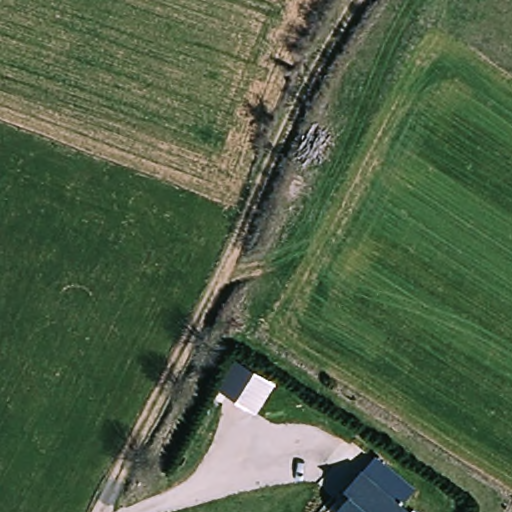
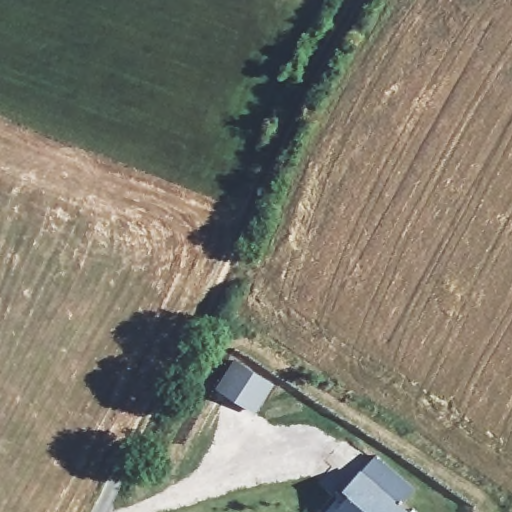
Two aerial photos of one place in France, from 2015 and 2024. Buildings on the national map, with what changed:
unchanged [(258,415),(218,390),(238,361),(276,385),(258,415)]
unchanged [(403,506),(409,512),(337,512),(337,510),(348,493),(345,489),(362,471),(380,457),(419,490),(403,506)]

